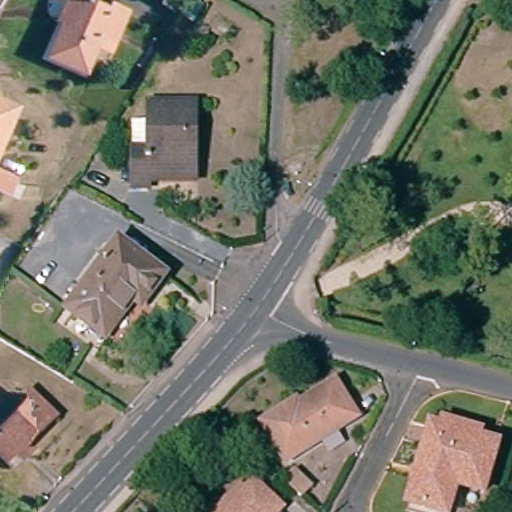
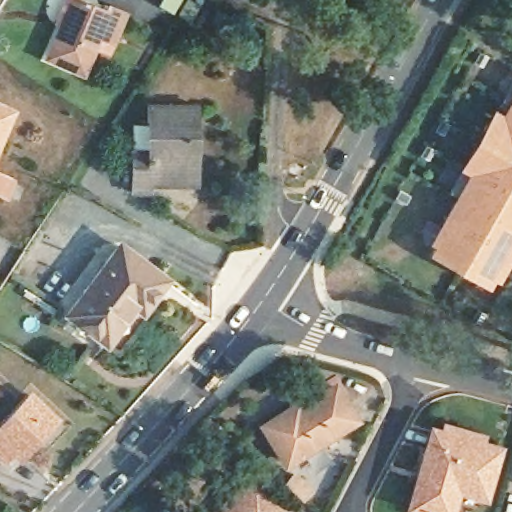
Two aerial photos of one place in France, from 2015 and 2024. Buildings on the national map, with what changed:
unchanged [(109,14),(123,19),(111,48),(97,42),(82,76),(48,62),(61,30),(58,28),(69,4),(77,6),(106,19),(109,14)]
new [(427,241),(467,172),(458,167),(493,106),(501,111),(512,92),(512,258),(499,282),(493,279),(489,288),(428,253),(432,244),(427,241)]
unchanged [(149,185),(149,190),(134,190),(134,151),(148,150),(147,107),(194,106),(194,125),(195,183),(149,185)]
unchanged [(2,179),(0,184),(0,179),(2,179)]
unchanged [(119,245),(165,280),(141,311),(134,306),(106,342),(67,314),(119,245)]
unchanged [(357,420),(285,466),(261,426),(297,403),(299,406),(334,384),(357,420)]
unchanged [(5,464),(0,459),(0,429),(30,395),(55,420),(25,453),(10,469),(5,464)]
unchanged [(456,495),(450,512),(416,512),(432,452),(427,450),(432,433),(498,451),(483,502),(456,495)]
unchanged [(283,482),(292,473),(311,490),(302,500),(283,482)]
unchanged [(280,512),(229,512),(253,485),(282,510),(280,512)]

